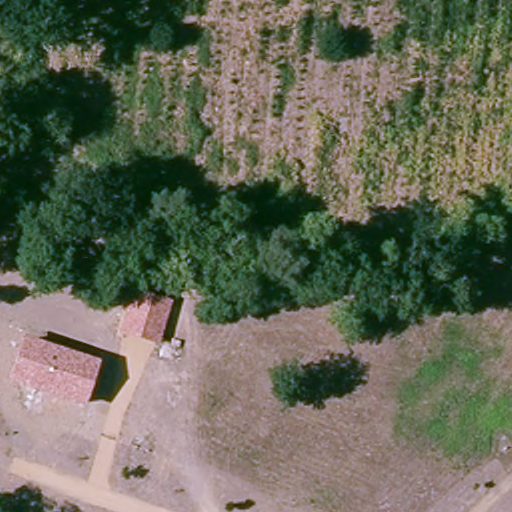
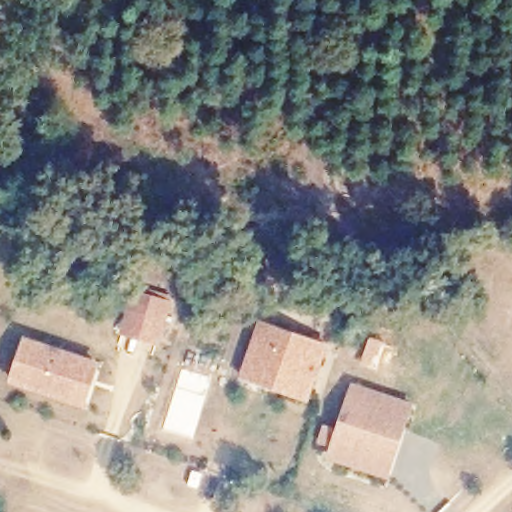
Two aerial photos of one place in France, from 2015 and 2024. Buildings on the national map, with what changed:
unchanged [(119,332),(133,288),(173,300),(159,345),(119,332)]
new [(329,344),(309,400),(284,393),(289,378),(243,365),(260,318),(329,344)]
unchanged [(100,362),(84,408),(7,383),(23,336),(100,362)]
new [(414,404),(391,478),(327,459),(353,383),(414,404)]

